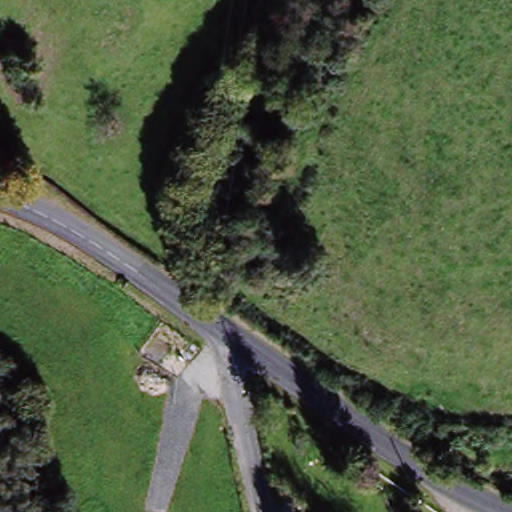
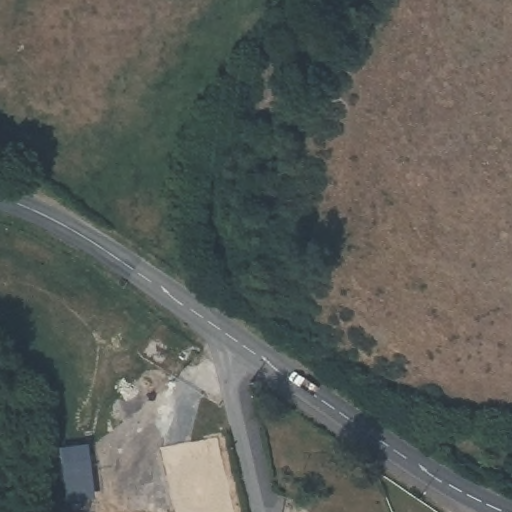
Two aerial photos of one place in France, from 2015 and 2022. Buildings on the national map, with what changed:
new [(86,443),(95,501),(65,507),(58,448),(86,443)]

